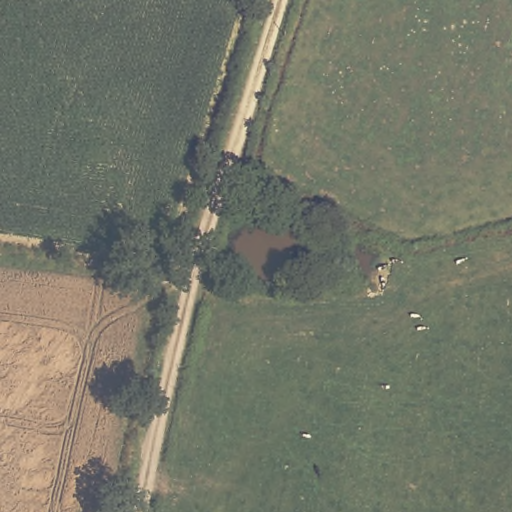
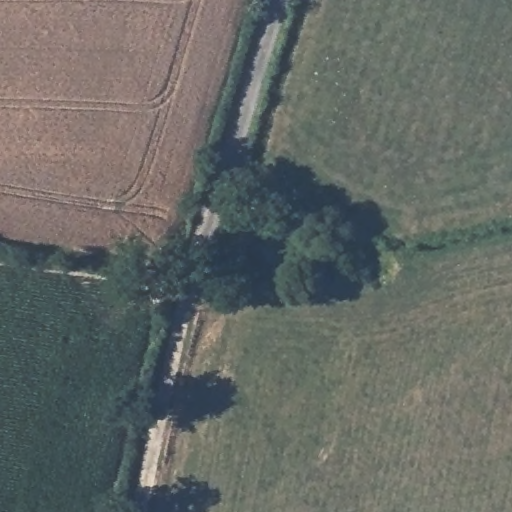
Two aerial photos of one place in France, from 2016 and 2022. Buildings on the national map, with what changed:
[]

